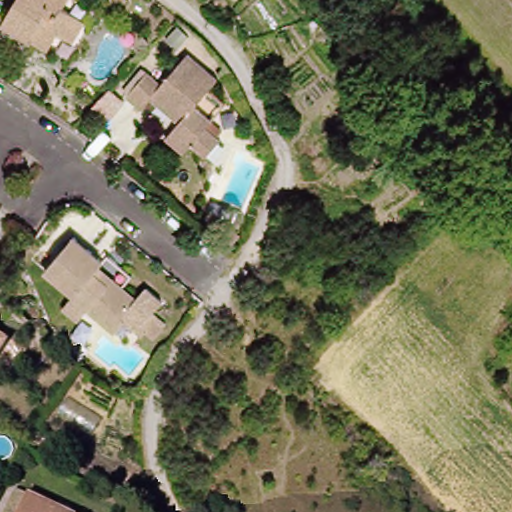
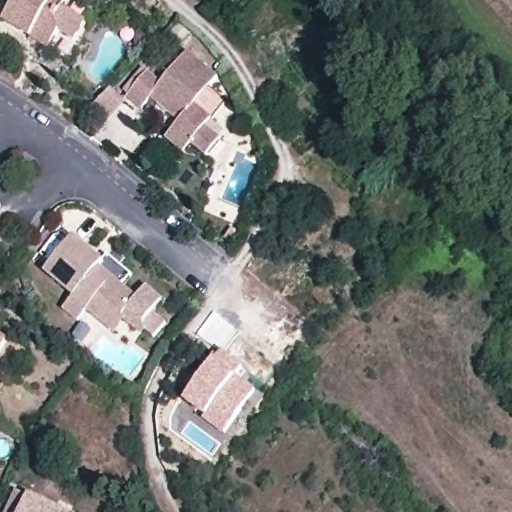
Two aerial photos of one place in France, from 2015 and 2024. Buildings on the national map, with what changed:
unchanged [(65,7),(84,20),(73,40),(57,32),(48,48),(3,23),(16,0),(68,0),(65,7)]
unchanged [(170,139),(177,130),(183,121),(175,114),(153,98),(146,107),(131,93),(150,70),(152,70),(166,80),(191,50),(222,75),(199,103),(216,116),(209,126),(223,138),(209,156),(195,144),(188,153),(170,139)]
new [(108,84),(124,100),(103,122),(86,105),(108,84)]
unchanged [(115,333),(101,321),(73,297),(75,294),(45,269),(73,236),(101,259),(98,265),(111,277),(137,298),(123,316),(126,318),(115,333)]
unchanged [(145,316),(158,327),(148,337),(138,328),(138,323),(145,316)]
unchanged [(0,358),(0,344),(6,349),(0,358)]
new [(221,351),(223,349),(246,369),(241,375),(258,389),(223,435),(181,399),(221,351)]
unchanged [(62,512),(17,512),(26,494),(62,512)]

